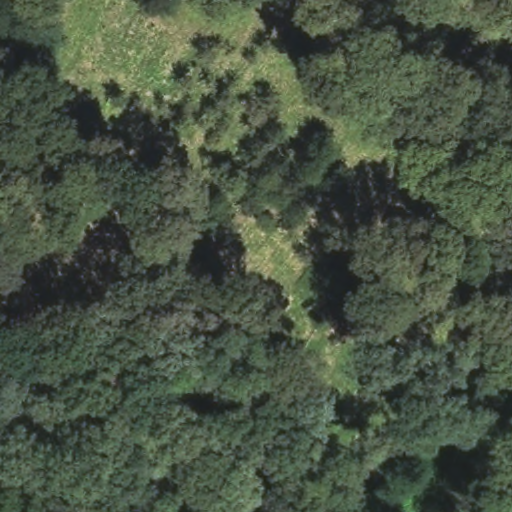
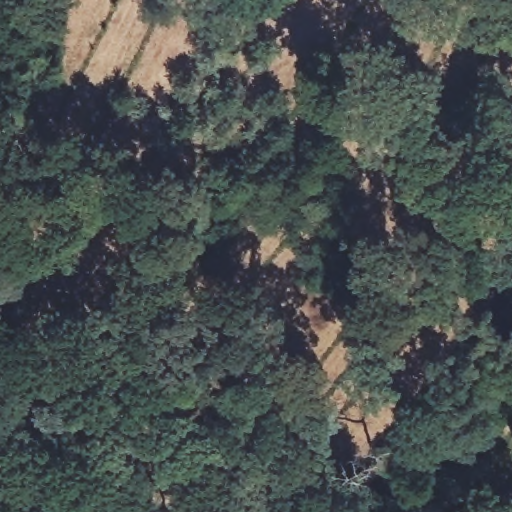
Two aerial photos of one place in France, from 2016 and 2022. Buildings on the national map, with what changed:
[]

